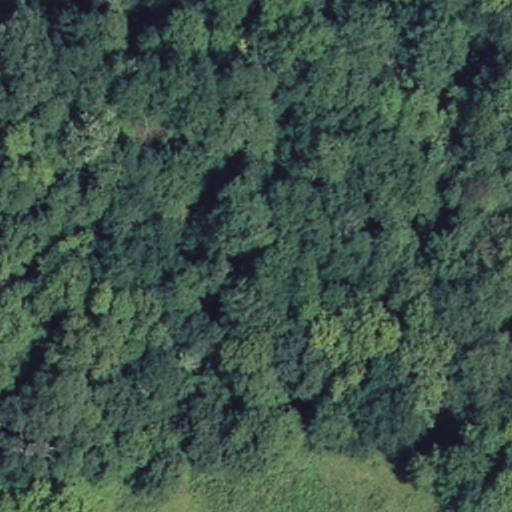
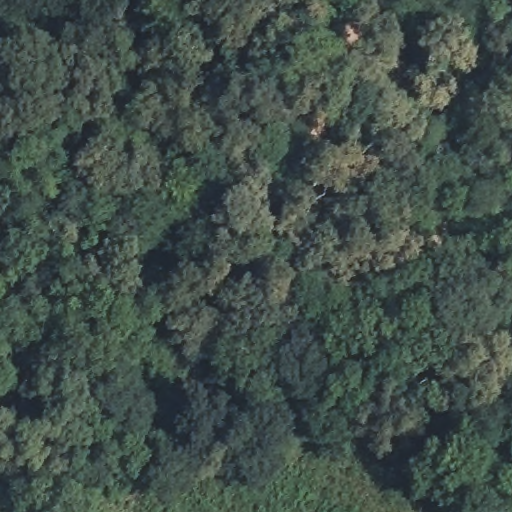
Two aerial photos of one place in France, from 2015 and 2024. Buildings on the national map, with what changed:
[]

